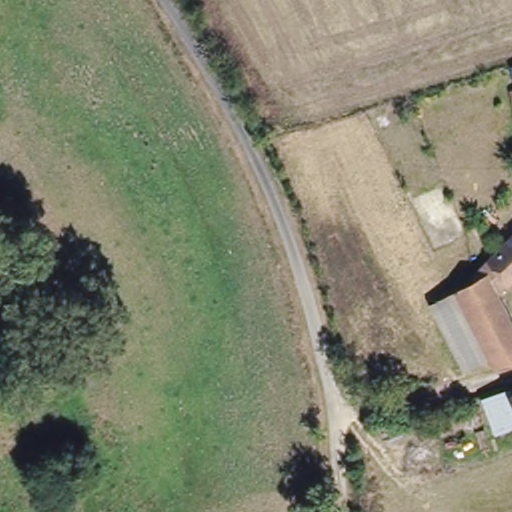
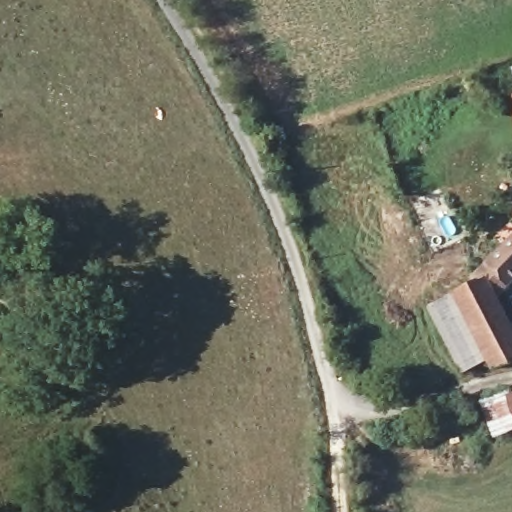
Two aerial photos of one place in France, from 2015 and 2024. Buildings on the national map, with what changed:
unchanged [(501,296),(512,317),(512,358),(495,360),(489,351),(464,366),(430,301),(478,277),(473,271),(512,232),(512,284),(501,296)]
unchanged [(488,402),(507,394),(508,397),(512,396),(512,428),(499,433),(488,402)]

